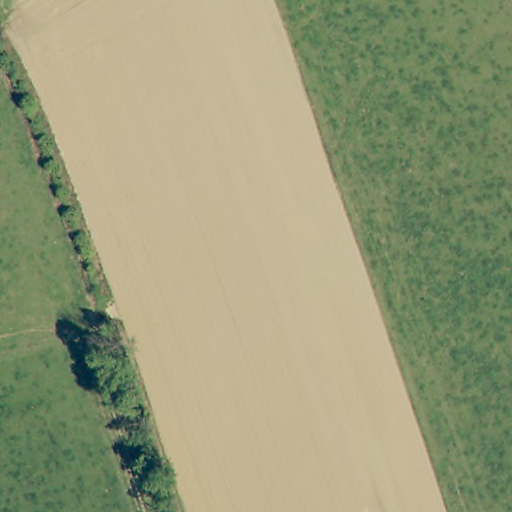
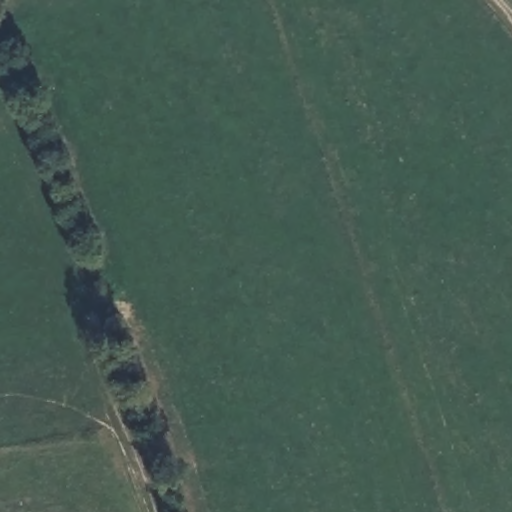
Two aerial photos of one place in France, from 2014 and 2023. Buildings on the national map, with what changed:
[]

